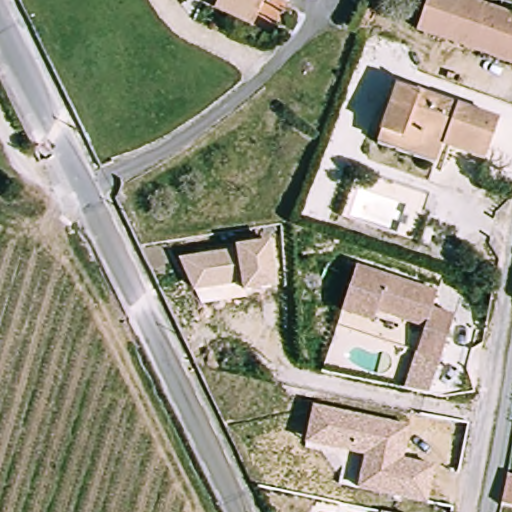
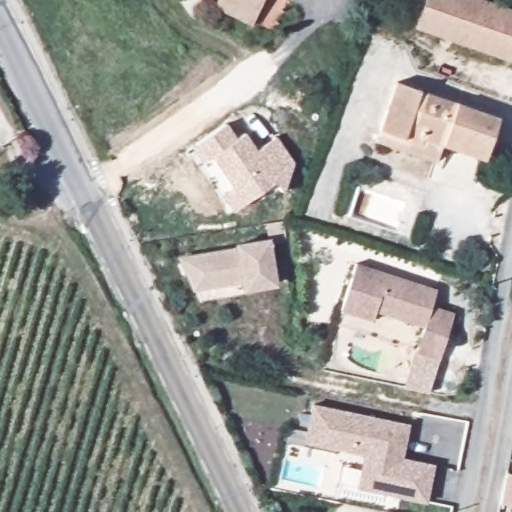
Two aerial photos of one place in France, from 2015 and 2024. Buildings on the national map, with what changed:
unchanged [(261,0),(283,0),(274,24),(264,26),(240,16),(202,2),(201,0),(228,0),(256,11),(261,0)]
unchanged [(228,0),(261,0),(256,11),(228,0)]
unchanged [(424,0),(477,0),(512,13),(512,63),(414,25),(424,0)]
unchanged [(438,164),(374,138),(395,82),(492,120),(478,157),(445,145),(438,164)]
new [(226,122),(237,137),(245,132),(257,149),(276,135),(294,161),(283,192),(276,182),(233,212),(221,194),(231,187),(210,157),(202,162),(192,147),(226,122)]
unchanged [(235,245),(271,239),(278,286),(242,291),(240,278),(193,289),(177,257),(235,245)]
unchanged [(354,264),(435,291),(430,307),(452,315),(437,360),(414,352),(422,327),(374,311),(371,321),(339,310),(354,264)]
unchanged [(434,466),(426,502),(355,487),(362,456),(303,442),(311,403),(411,425),(405,458),(434,466)]
unchanged [(512,475),(512,507),(503,505),(508,474),(512,475)]

